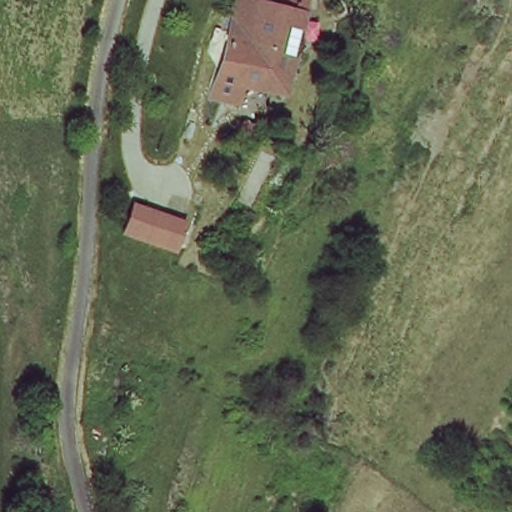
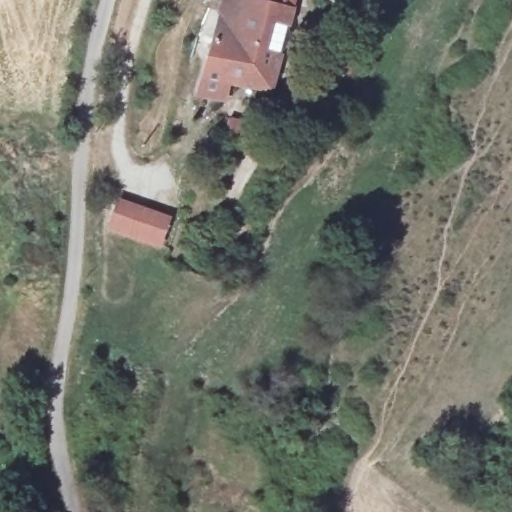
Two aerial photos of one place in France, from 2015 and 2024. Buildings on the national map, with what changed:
unchanged [(226,107),(216,104),(217,99),(197,93),(212,39),(232,45),(245,0),(297,0),(270,93),(233,82),(226,107)]
unchanged [(214,156),(219,137),(233,141),(229,159),(214,156)]
unchanged [(157,250),(103,226),(117,199),(171,215),(157,250)]

